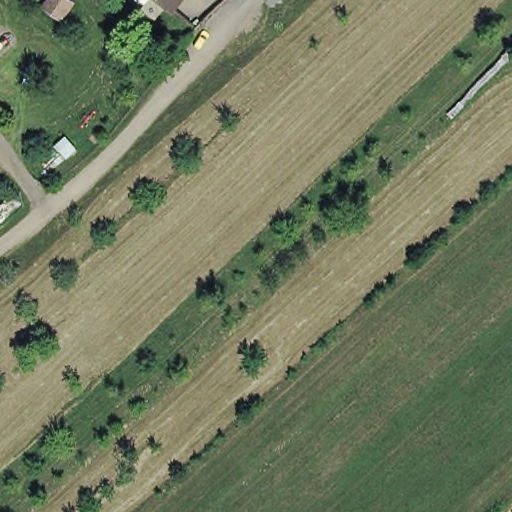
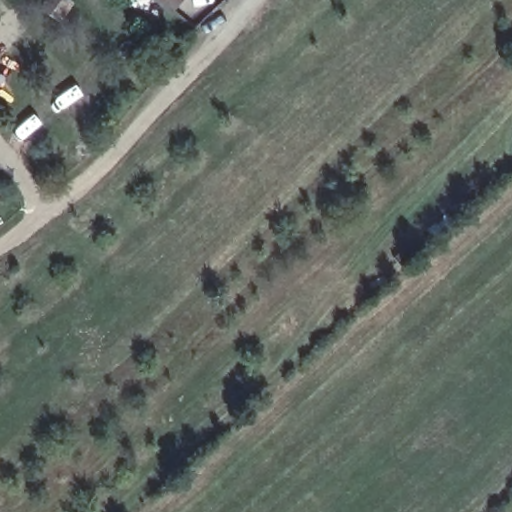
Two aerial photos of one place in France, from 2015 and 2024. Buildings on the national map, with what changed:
unchanged [(40,9),(48,0),(57,0),(68,8),(57,21),(40,9)]

